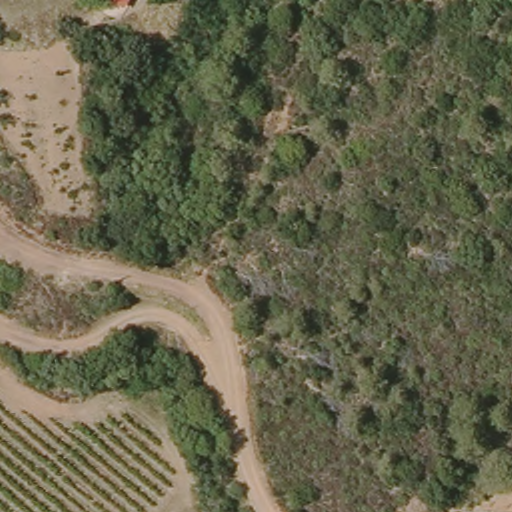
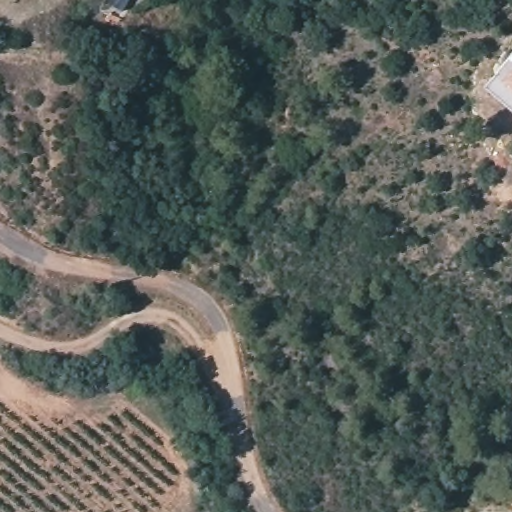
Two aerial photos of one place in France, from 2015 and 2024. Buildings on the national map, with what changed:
unchanged [(134,0),(128,11),(110,1),(110,0),(134,0)]
new [(495,67),(502,75),(512,65),(512,109),(483,80),(495,67)]

